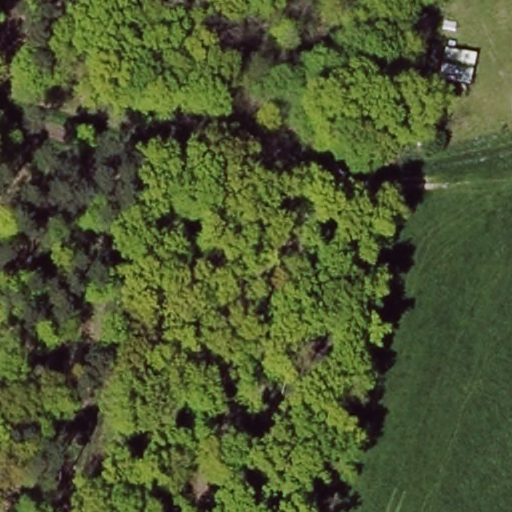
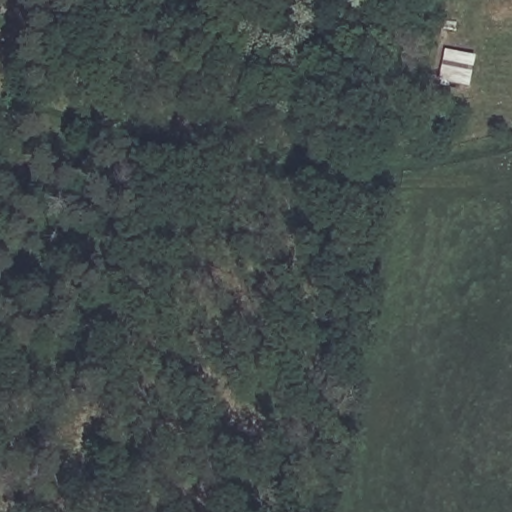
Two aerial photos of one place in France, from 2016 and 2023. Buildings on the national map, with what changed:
unchanged [(475,57),(468,87),(437,81),(444,49),(475,57)]

